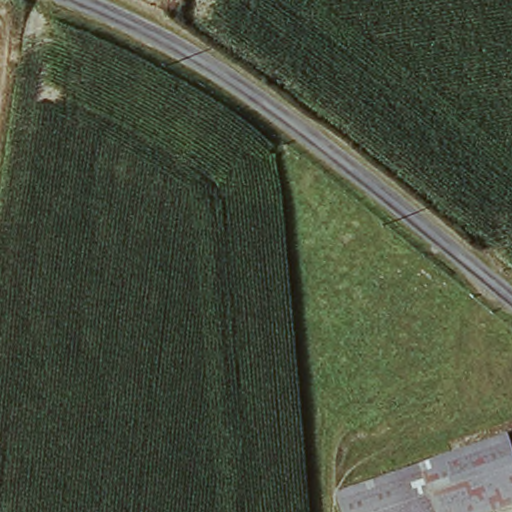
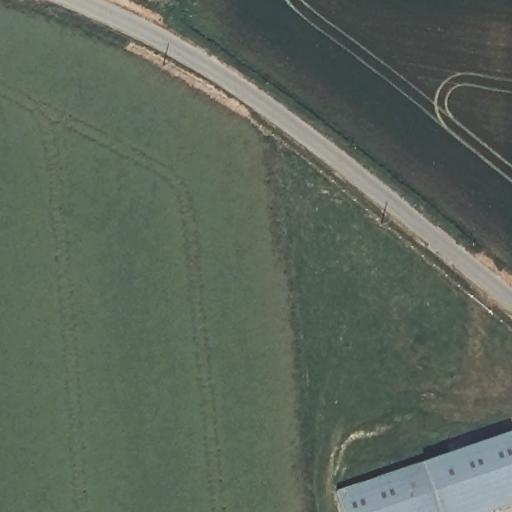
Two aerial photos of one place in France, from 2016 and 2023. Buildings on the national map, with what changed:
unchanged [(512,436),(512,459),(478,471),(489,503),(463,512),(334,512),(330,500),(345,495),(512,436)]
unchanged [(511,497),(489,503),(478,471),(512,459),(512,497),(511,497)]
unchanged [(511,512),(463,512),(489,503),(511,497),(512,497),(512,512),(511,512)]

